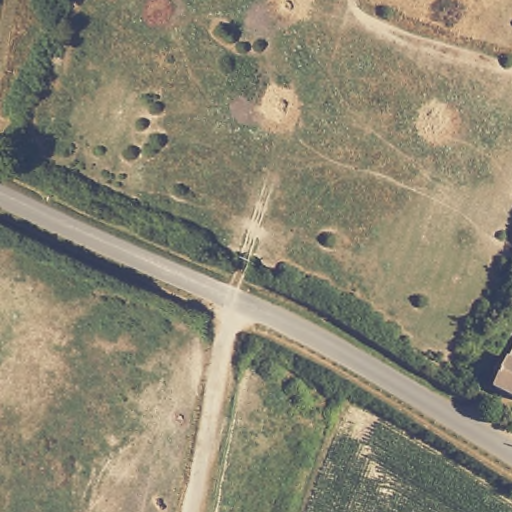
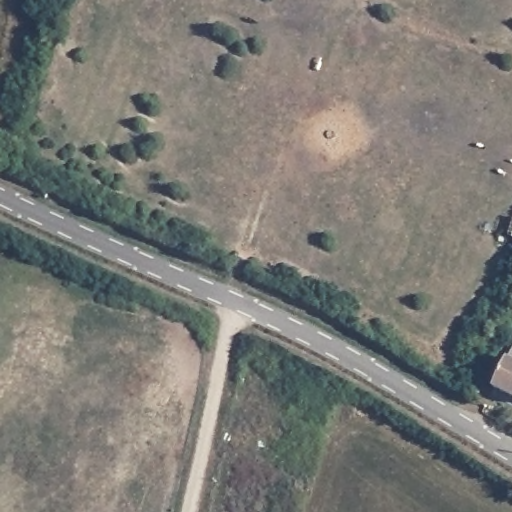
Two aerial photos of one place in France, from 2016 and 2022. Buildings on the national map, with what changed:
unchanged [(494,388),(512,351),(512,397),(494,388)]

